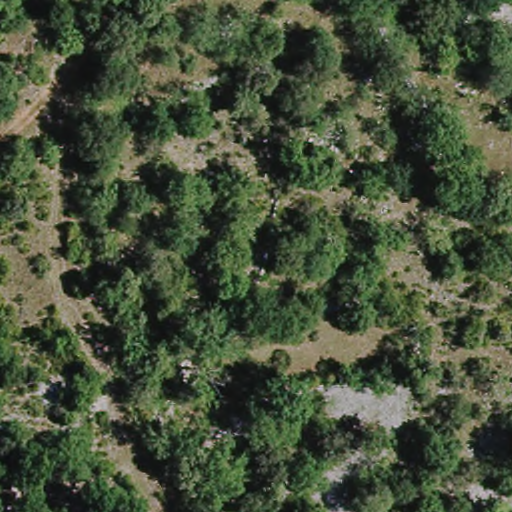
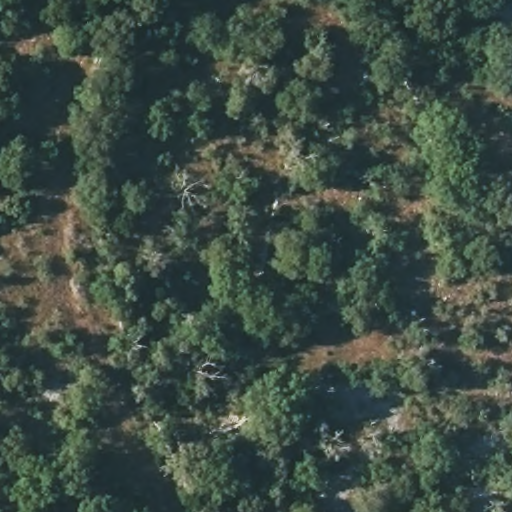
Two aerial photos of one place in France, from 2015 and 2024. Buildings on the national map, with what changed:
[]

